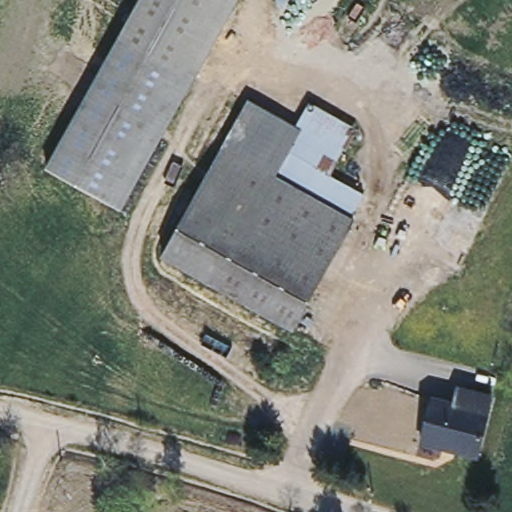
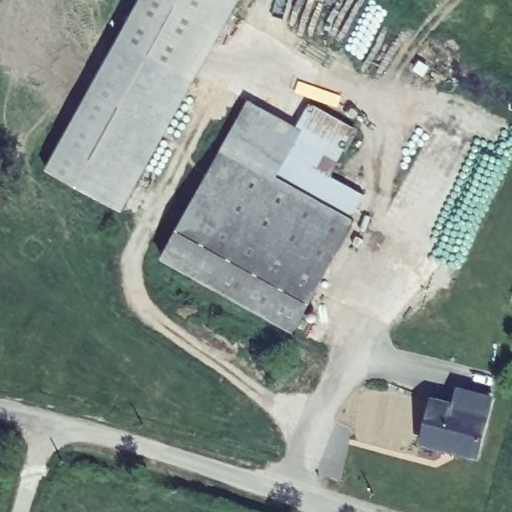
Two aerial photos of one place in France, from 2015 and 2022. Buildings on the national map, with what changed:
unchanged [(119,210),(45,168),(141,0),(238,0),(119,210)]
unchanged [(269,173),(223,146),(248,101),(295,128),(271,169),(269,173)]
unchanged [(307,106),(348,130),(325,170),(365,194),(351,216),(271,169),(295,128),(307,106)]
unchanged [(269,173),(355,222),(292,331),(160,256),(223,146),(269,173)]
unchanged [(448,402),(452,387),(488,397),(472,454),(416,439),(427,397),(448,402)]

